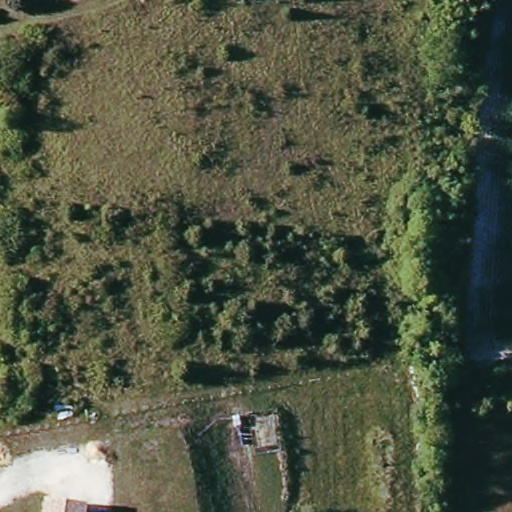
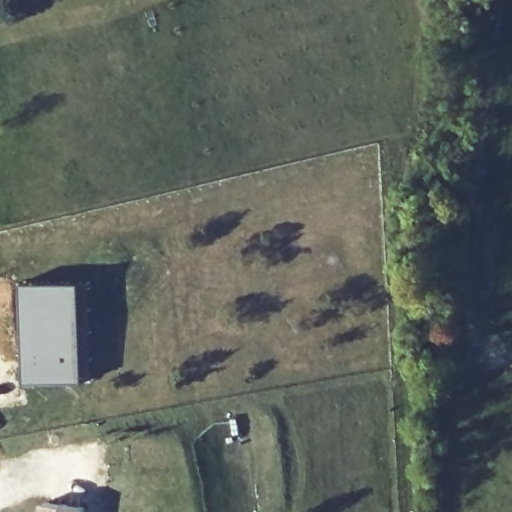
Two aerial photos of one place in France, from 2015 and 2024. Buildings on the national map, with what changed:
new [(22,281),(84,281),(85,381),(22,384),(21,349),(22,281)]
unchanged [(89,509),(88,512),(43,512),(44,502),(89,509)]

